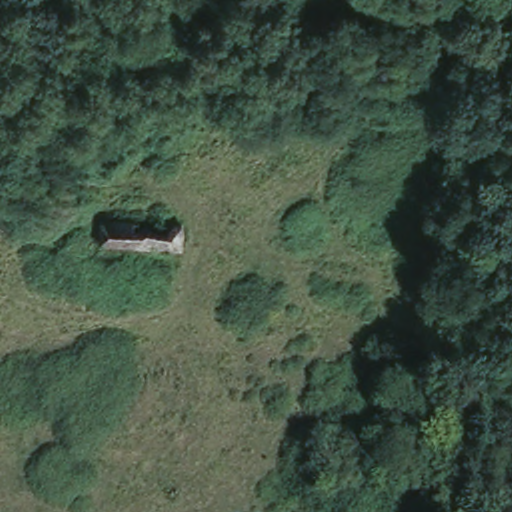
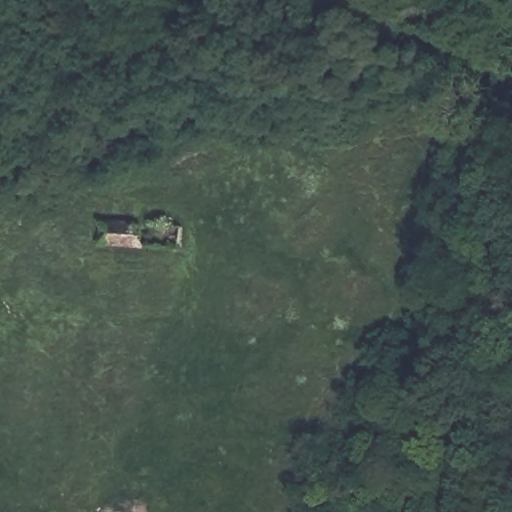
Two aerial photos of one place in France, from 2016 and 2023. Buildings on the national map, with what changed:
unchanged [(104,222),(181,226),(181,248),(104,246),(104,222)]

